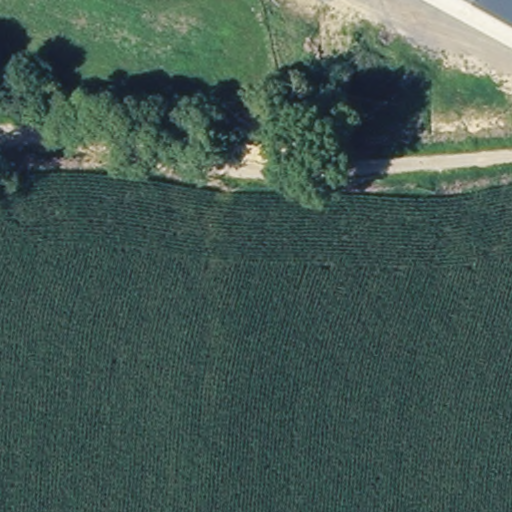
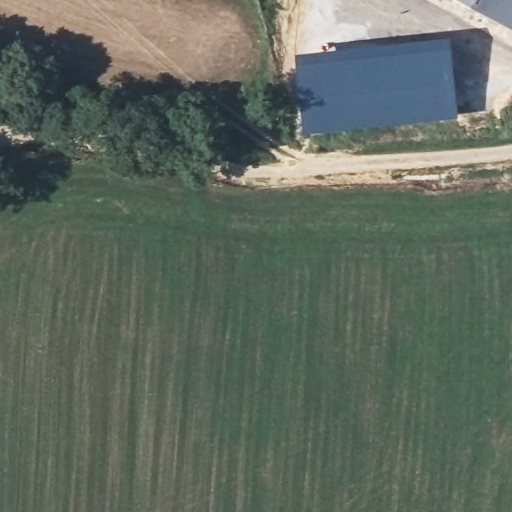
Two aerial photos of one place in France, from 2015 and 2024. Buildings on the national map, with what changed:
unchanged [(512,27),(463,0),(512,0),(512,27)]
new [(338,49),(366,44),(393,43),(450,37),(459,120),(304,135),(295,54),(338,49)]

